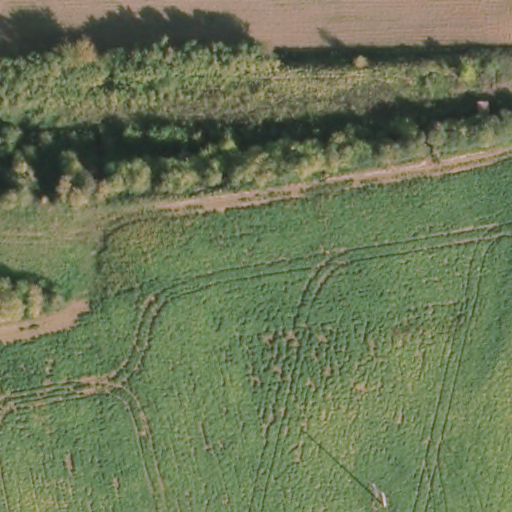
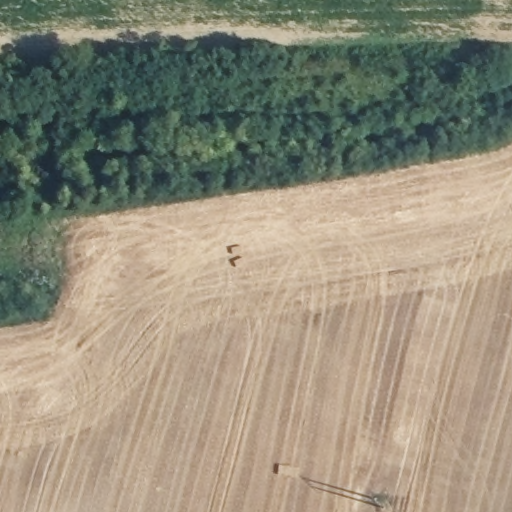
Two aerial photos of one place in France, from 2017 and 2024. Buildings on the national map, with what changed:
[]

